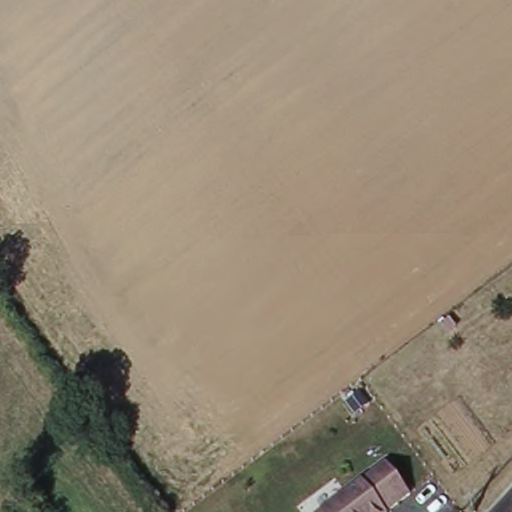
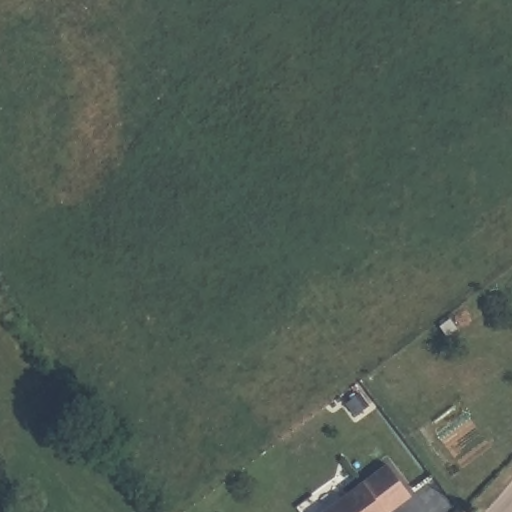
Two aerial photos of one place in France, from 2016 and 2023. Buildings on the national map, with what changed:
unchanged [(414,494),(393,512),(321,512),(390,457),(414,494)]

